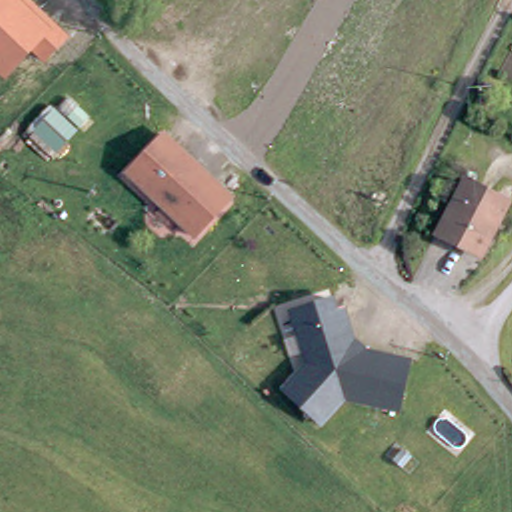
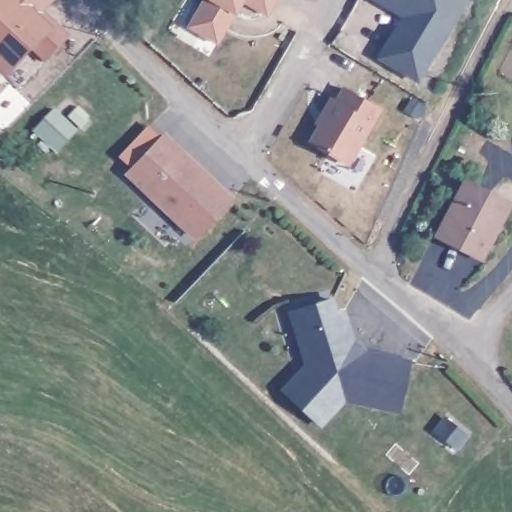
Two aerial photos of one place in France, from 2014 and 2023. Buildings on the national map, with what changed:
unchanged [(69,36),(46,61),(35,51),(6,82),(0,77),(0,0),(30,0),(69,36)]
new [(243,3),(236,15),(220,44),(185,26),(197,0),(277,0),(268,16),(243,3)]
new [(419,84),(378,59),(403,17),(372,0),(468,0),(419,84)]
new [(335,99),(342,87),(383,108),(351,165),(307,141),(317,123),(315,121),(329,96),(335,99)]
new [(65,117),(75,106),(86,116),(76,127),(56,149),(33,128),(53,106),(65,117)]
unchanged [(237,196),(196,241),(122,173),(163,127),(237,196)]
unchanged [(504,203),(477,255),(441,237),(468,183),(504,203)]
unchanged [(398,407),(346,397),(321,422),(289,389),(310,364),(292,311),(333,299),(337,315),(346,315),(351,342),(369,353),(408,362),(398,407)]

